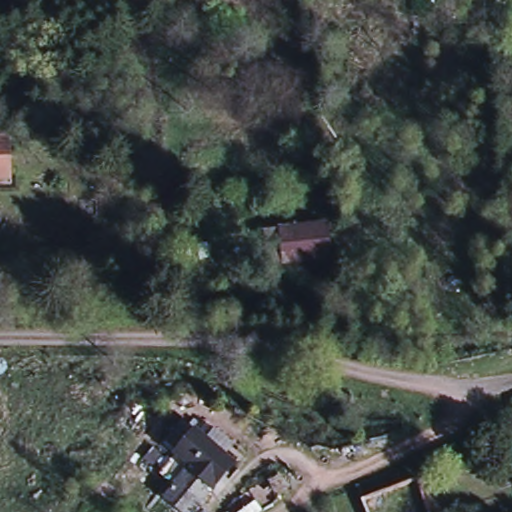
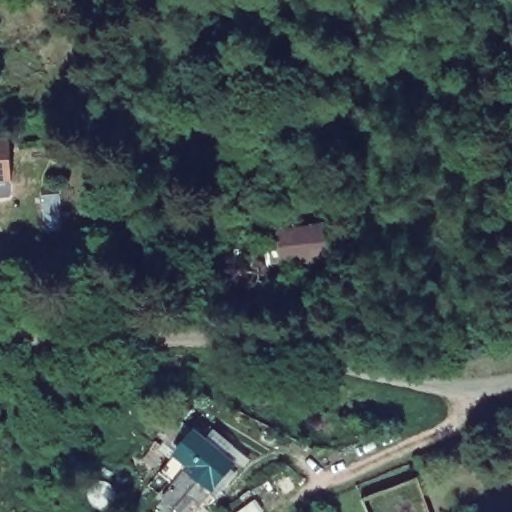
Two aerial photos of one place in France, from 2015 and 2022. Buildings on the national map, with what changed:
unchanged [(11,176),(0,176),(0,141),(10,141),(11,176)]
unchanged [(326,227),(330,261),(284,266),(280,232),(326,227)]
unchanged [(191,510),(162,482),(174,470),(165,462),(183,444),(202,425),(239,460),(216,483),(215,484),(226,495),(218,502),(208,512),(197,512),(192,507),(191,510)]

